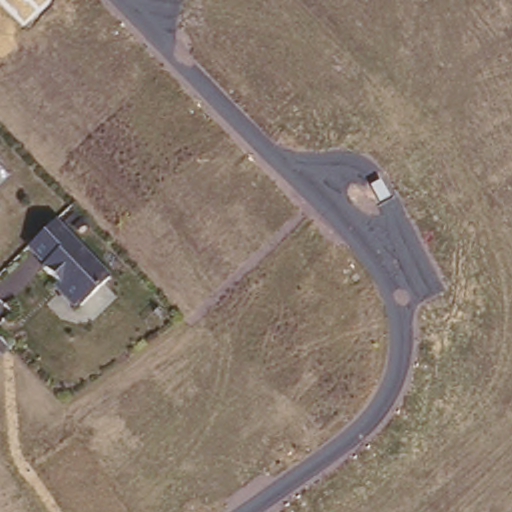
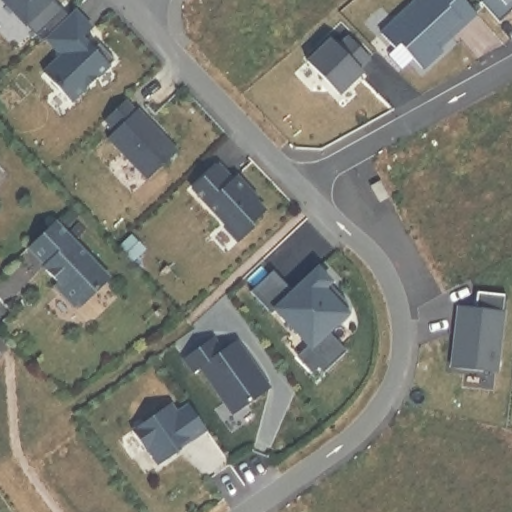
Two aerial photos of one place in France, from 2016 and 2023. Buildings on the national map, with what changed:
new [(1,0),(46,0),(22,22),(1,0)]
new [(458,22),(445,34),(443,32),(432,42),(440,50),(419,69),(397,44),(392,49),(378,33),(414,0),(462,0),(473,13),(460,25),(458,22)]
new [(478,2),(480,0),(512,0),(512,8),(496,22),(478,2)]
new [(88,27),(75,40),(79,36),(86,44),(90,47),(95,42),(111,60),(67,101),(40,72),(58,54),(42,37),(70,9),(88,27)]
new [(434,45),(432,42),(443,32),(445,34),(434,45)]
new [(335,47),(345,36),(366,57),(355,68),(359,72),(335,95),(303,61),(327,39),(335,47)]
new [(132,110),(134,109),(174,150),(143,179),(104,138),(110,131),(100,120),(122,99),(132,110)]
new [(229,179),(232,176),(243,187),(242,191),(261,211),(250,222),(250,227),(236,240),(188,187),(214,164),(229,179)]
unchanged [(107,285),(75,313),(42,274),(45,271),(28,250),(53,224),(107,285)]
new [(269,270),(289,292),(314,268),(327,282),(320,289),(326,284),(336,295),(345,304),(345,310),(345,312),(343,315),(307,349),(271,310),(267,314),(246,292),(269,270)]
new [(470,308),(472,292),(502,295),(493,373),(447,368),(455,306),(470,308)]
new [(262,392),(226,415),(195,368),(188,373),(179,358),(208,340),(216,353),(230,343),(262,392)]
new [(175,451),(155,465),(144,449),(141,450),(127,431),(166,404),(172,413),(185,405),(202,430),(189,438),(187,437),(190,440),(175,451)]

